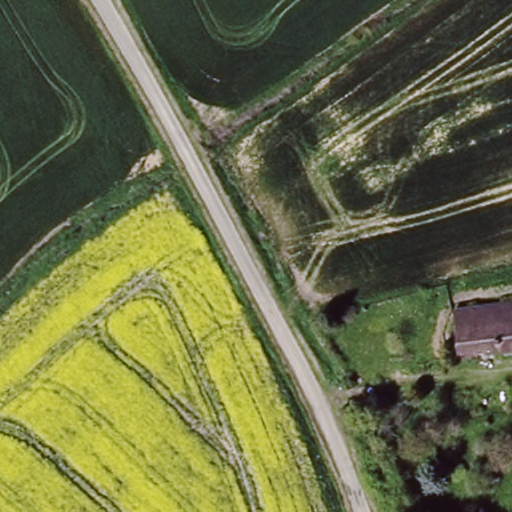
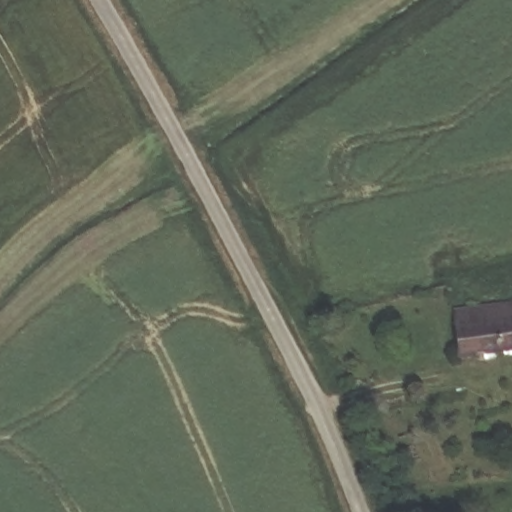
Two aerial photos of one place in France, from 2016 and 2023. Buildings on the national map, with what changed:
unchanged [(454,308),(512,301),(512,346),(461,352),(454,308)]

